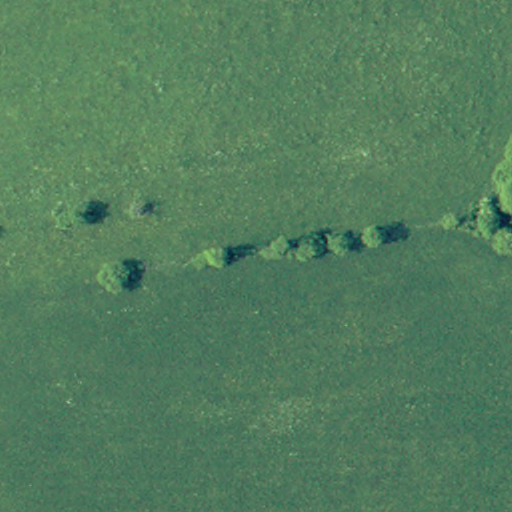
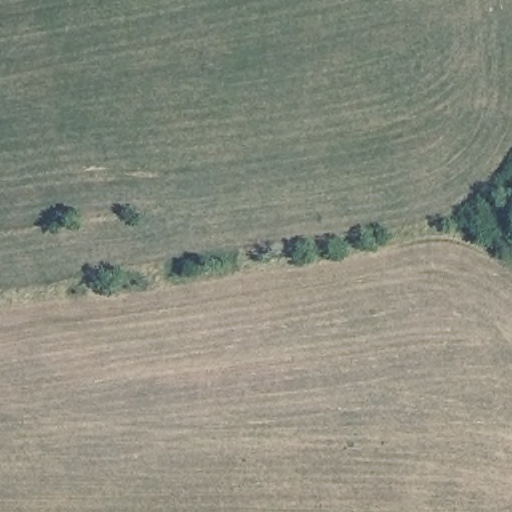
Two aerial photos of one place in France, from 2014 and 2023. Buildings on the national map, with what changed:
[]

